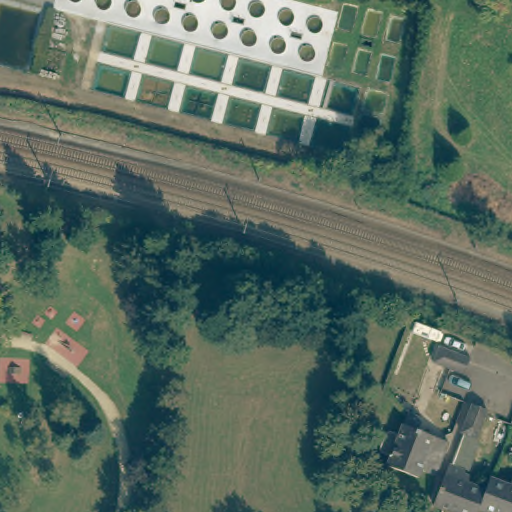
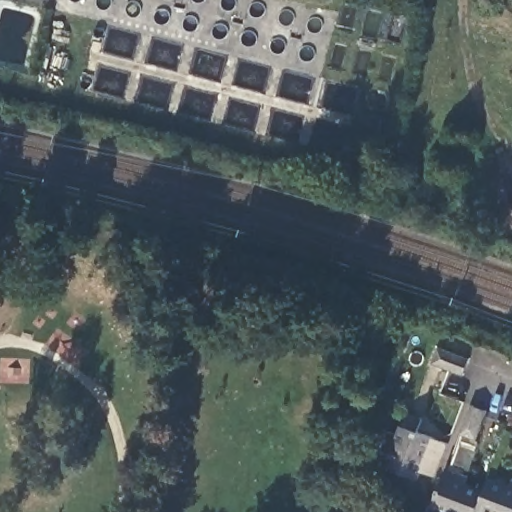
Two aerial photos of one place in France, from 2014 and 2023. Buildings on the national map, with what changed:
unchanged [(345,168),(368,145),(384,158),(361,182),(345,168)]
unchanged [(463,376),(450,371),(435,365),(441,350),(469,361),(463,376)]
unchanged [(475,441),(460,435),(471,407),(486,413),(485,417),(475,441)]
unchanged [(420,416),(416,427),(447,440),(434,471),(425,467),(420,466),(417,474),(387,463),(387,462),(390,453),(399,431),(406,410),(420,416)]
unchanged [(468,468),(467,471),(473,473),(471,477),(486,482),(490,470),(512,477),(512,512),(495,512),(486,509),(477,506),(474,512),(460,512),(441,505),(432,502),(448,461),(468,468)]

